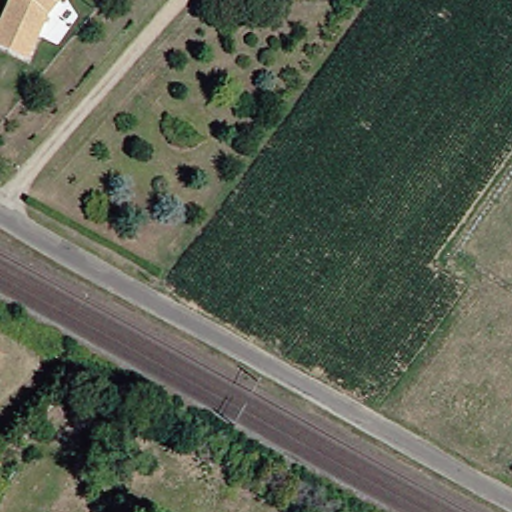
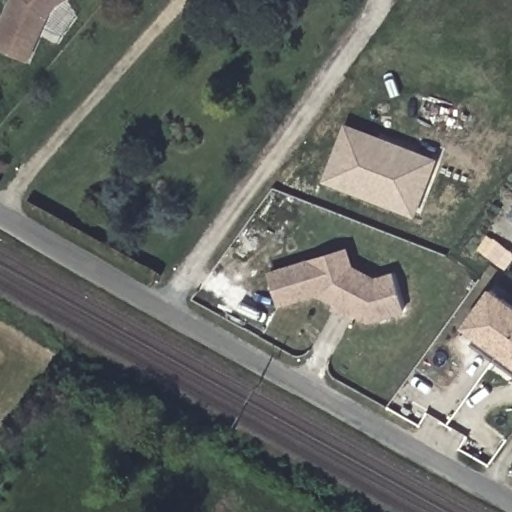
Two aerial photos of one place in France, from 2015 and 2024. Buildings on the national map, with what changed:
unchanged [(58,3),(49,14),(29,58),(0,45),(0,25),(11,0),(63,0),(58,3)]
new [(355,192),(323,179),(343,125),(432,160),(416,201),(411,214),(355,192)]
new [(511,214),(512,214),(512,215),(511,214)]
new [(320,294),(319,291),(280,303),(270,272),(328,254),(346,248),(351,266),(375,278),(391,273),(402,310),(368,320),(355,313),(352,319),(333,308),(336,303),(320,294)]
new [(490,290),(512,306),(512,333),(492,359),(470,343),(457,334),(463,326),(490,290)]
new [(492,359),(512,333),(512,373),(492,359)]

